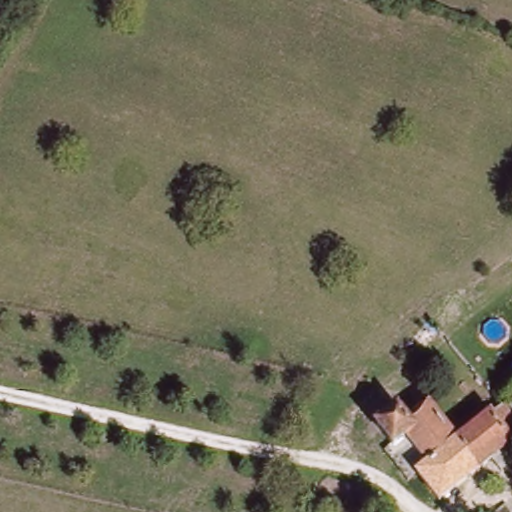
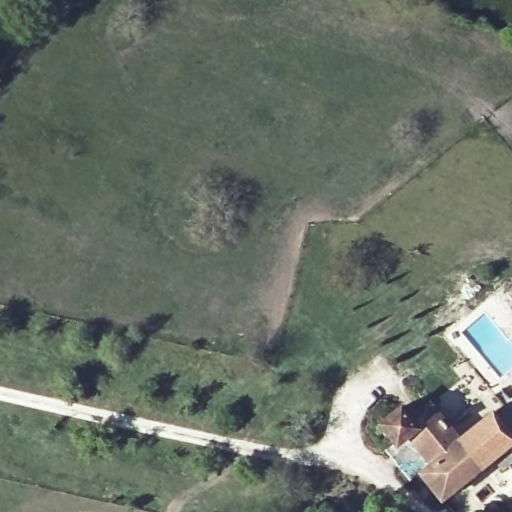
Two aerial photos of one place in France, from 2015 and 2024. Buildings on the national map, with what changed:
unchanged [(399,409),(409,422),(429,407),(460,444),(490,419),(510,446),(439,502),(417,478),(410,484),(385,453),(394,446),(378,424),(399,409)]

